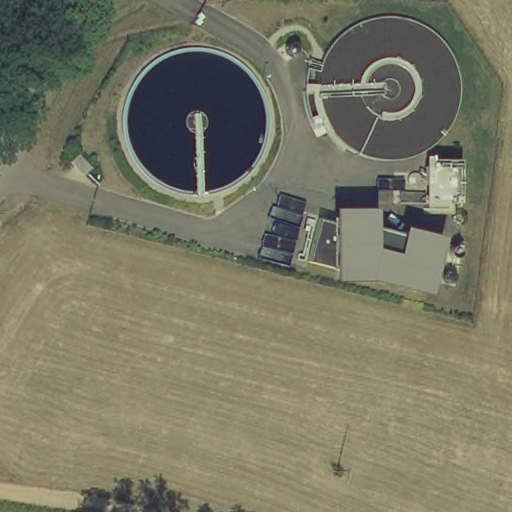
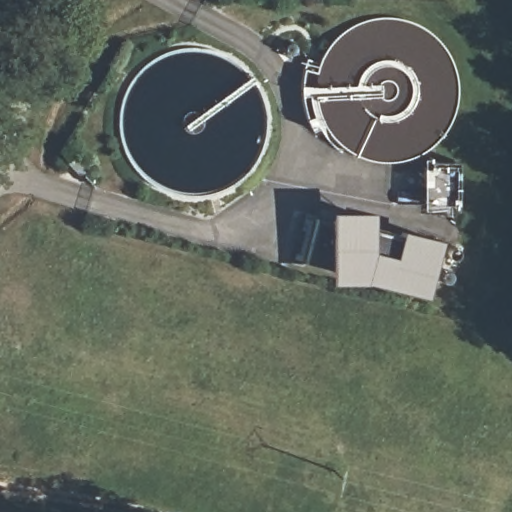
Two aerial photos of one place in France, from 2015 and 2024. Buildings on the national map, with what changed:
unchanged [(462,213),(424,212),(426,159),(460,156),(462,213)]
unchanged [(437,291),(332,280),(333,265),(310,258),(315,230),(332,231),(332,208),(375,206),(374,227),(444,236),(437,291)]

